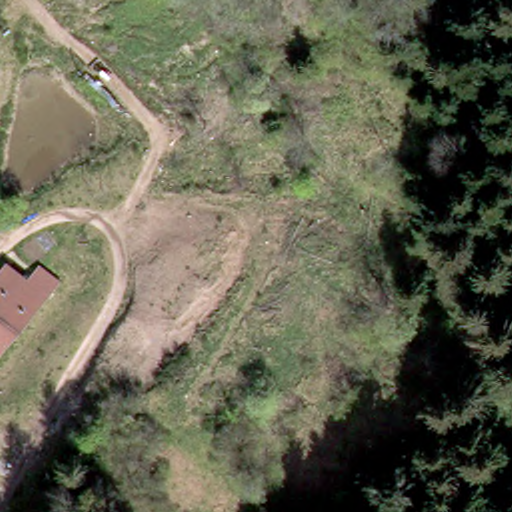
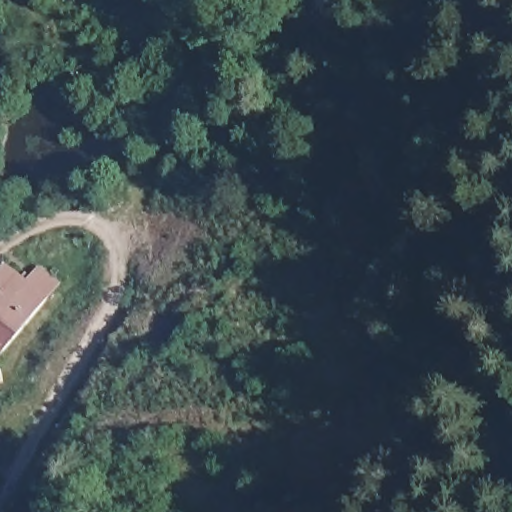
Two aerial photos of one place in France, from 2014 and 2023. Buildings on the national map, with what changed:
unchanged [(0,341),(0,258),(39,290),(0,341)]

